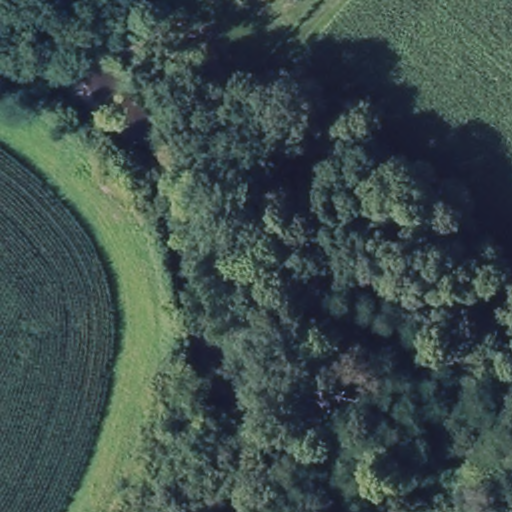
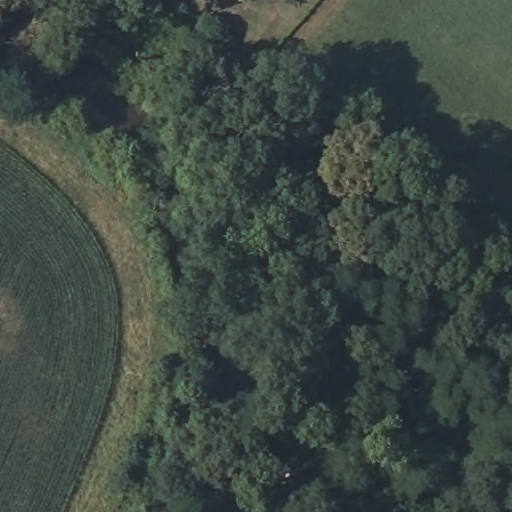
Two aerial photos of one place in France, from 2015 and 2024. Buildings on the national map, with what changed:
[]

